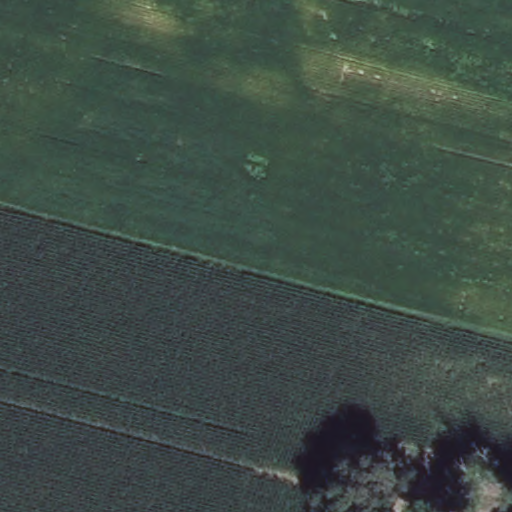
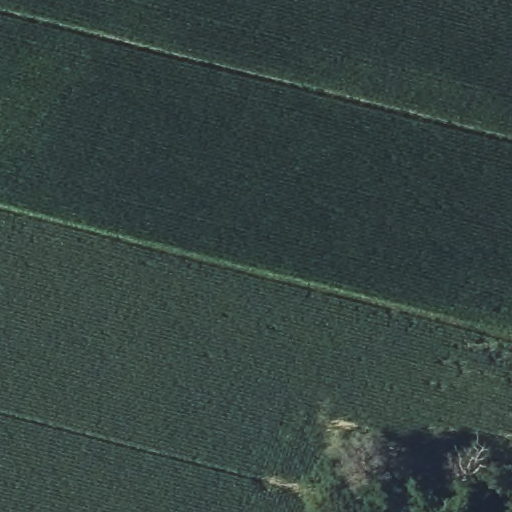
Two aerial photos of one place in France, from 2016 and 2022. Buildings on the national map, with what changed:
[]

